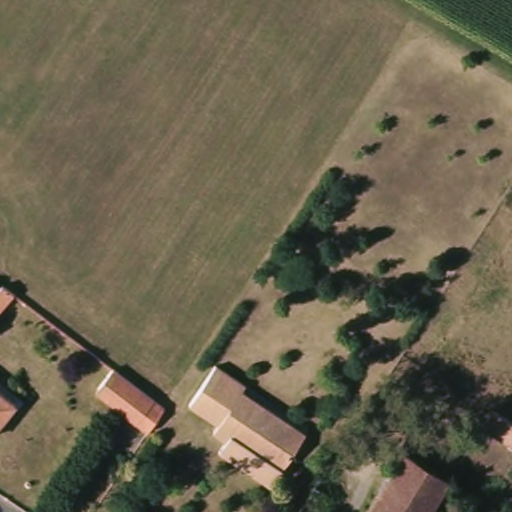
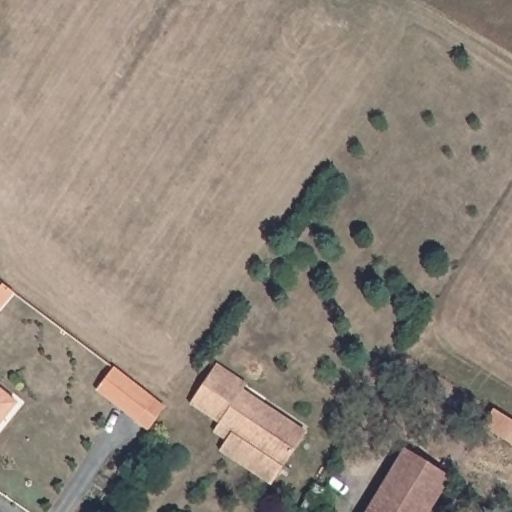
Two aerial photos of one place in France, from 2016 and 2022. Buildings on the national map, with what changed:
unchanged [(0,313),(0,298),(6,302),(0,313)]
unchanged [(124,378),(159,403),(160,405),(144,427),(90,388),(106,365),(124,378)]
unchanged [(219,452),(224,440),(213,433),(219,423),(189,406),(215,365),(246,385),(242,391),(306,432),(270,485),(219,452)]
unchanged [(0,422),(0,387),(17,401),(0,422)]
unchanged [(481,428),(490,411),(512,423),(512,445),(481,428)]
unchanged [(453,479),(432,512),(364,512),(406,449),(453,479)]

